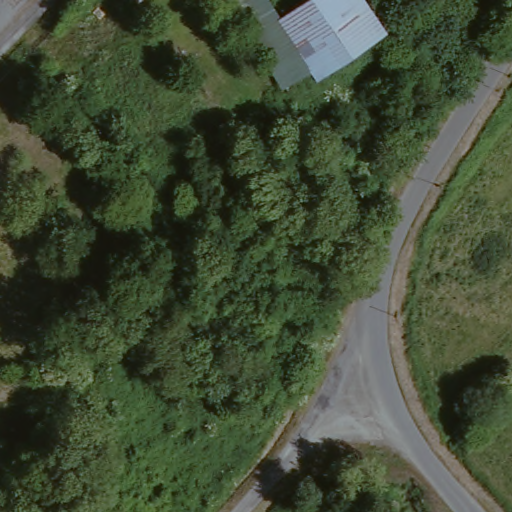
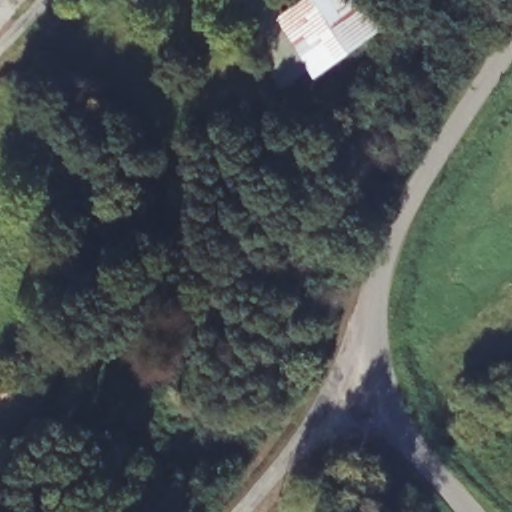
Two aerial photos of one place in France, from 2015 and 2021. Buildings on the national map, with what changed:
unchanged [(147,3),(136,12),(127,0),(144,0),(147,3)]
unchanged [(286,12),(301,0),(379,0),(392,14),(333,66),(340,75),(321,91),(306,73),(301,77),(233,0),(276,0),(286,12)]

